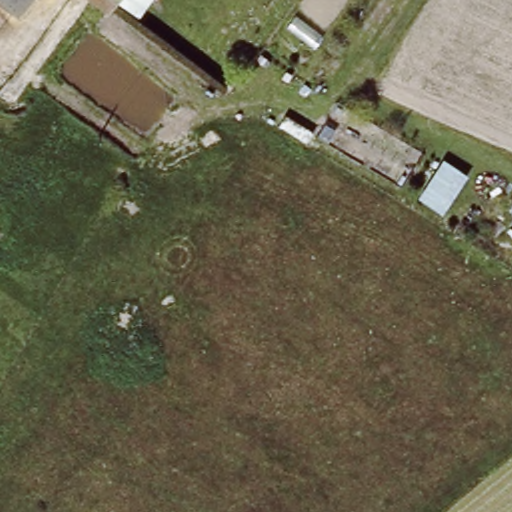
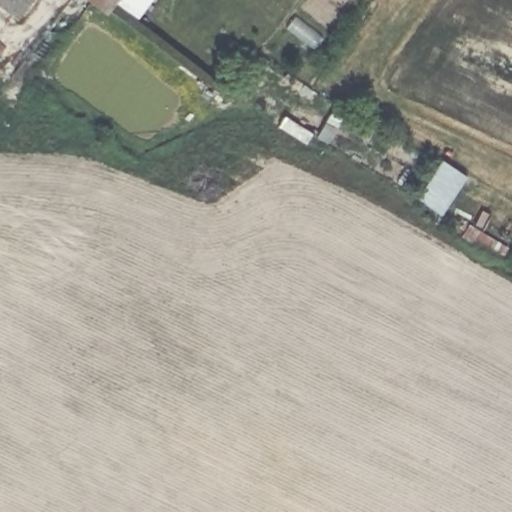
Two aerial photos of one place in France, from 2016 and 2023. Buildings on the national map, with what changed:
unchanged [(18,17),(0,3),(0,0),(30,0),(18,17)]
unchanged [(106,12),(91,0),(116,0),(106,12)]

